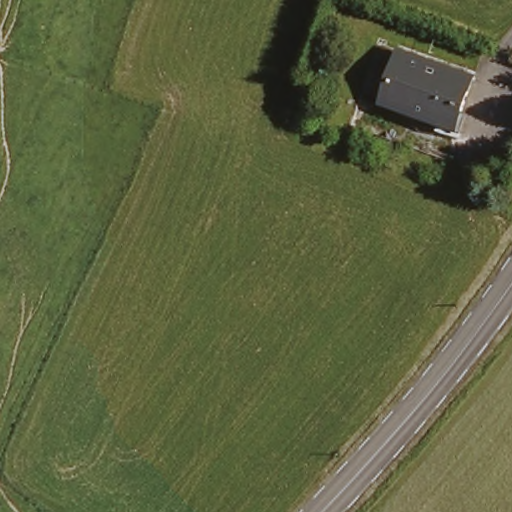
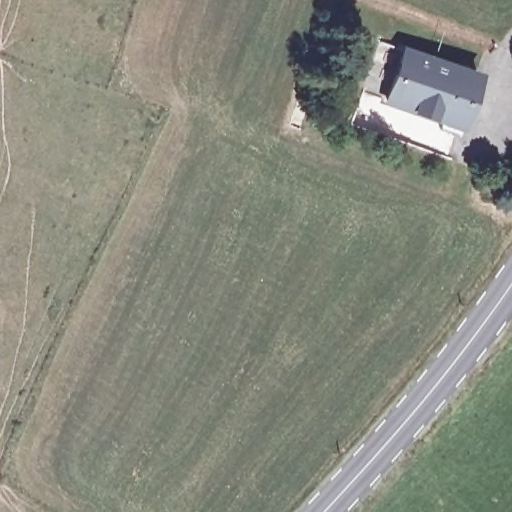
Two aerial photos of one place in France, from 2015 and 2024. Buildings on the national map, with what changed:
unchanged [(393,101),(410,51),(482,77),(464,126),(393,101)]

